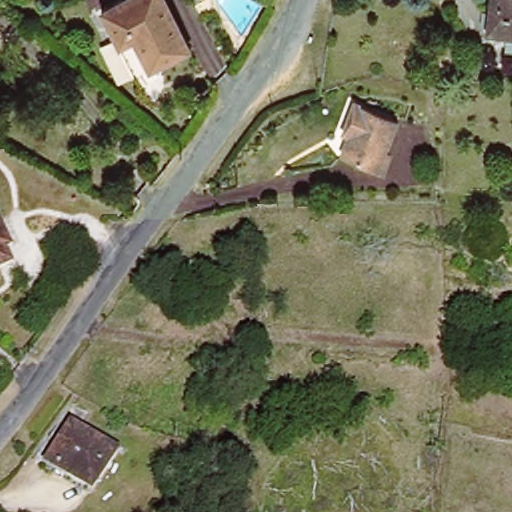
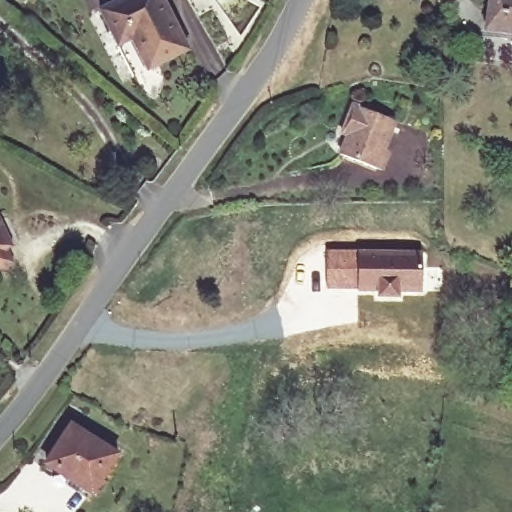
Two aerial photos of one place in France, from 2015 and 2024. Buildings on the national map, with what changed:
unchanged [(171,0),(193,44),(139,70),(105,4),(115,0),(171,0)]
unchanged [(200,14),(192,0),(207,0),(212,8),(200,14)]
unchanged [(512,0),(512,32),(490,29),(494,0),(512,0)]
unchanged [(405,123),(386,171),(345,155),(352,135),(345,132),(349,124),(357,104),(405,123)]
unchanged [(12,248),(19,262),(0,270),(0,207),(18,244),(12,248)]
new [(325,249),(419,249),(419,266),(422,266),(422,293),(401,293),(401,298),(375,298),(375,292),(325,289),(325,249)]
unchanged [(118,454),(92,494),(45,464),(71,424),(118,454)]

